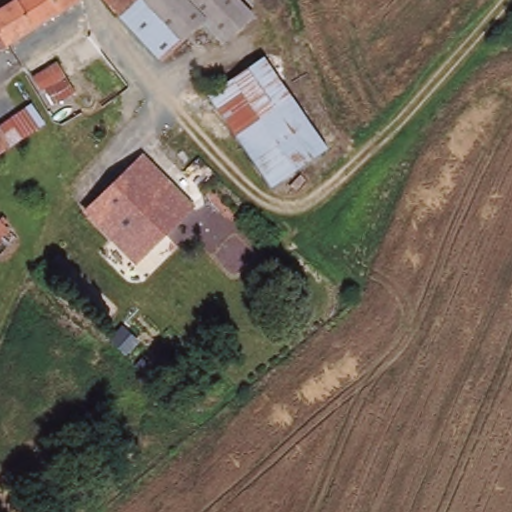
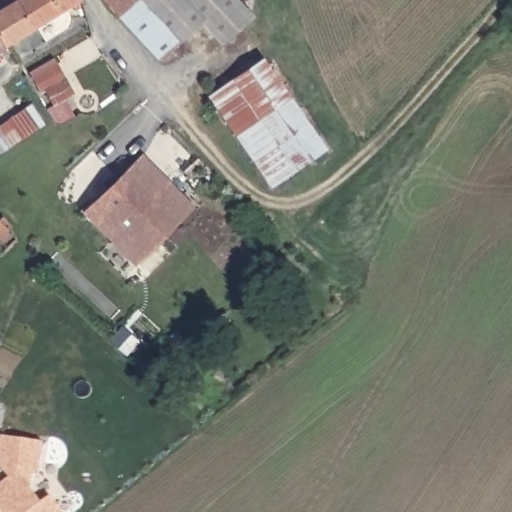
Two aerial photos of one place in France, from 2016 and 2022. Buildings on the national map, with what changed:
unchanged [(3,49),(0,44),(0,12),(19,0),(76,0),(77,2),(3,49)]
unchanged [(102,0),(137,0),(119,18),(102,0)]
unchanged [(141,41),(119,18),(137,0),(240,0),(253,13),(242,22),(221,41),(202,22),(157,61),(148,70),(146,70),(130,51),(141,41)]
unchanged [(3,49),(0,51),(0,44),(3,49)]
unchanged [(327,149),(269,190),(206,98),(262,57),(327,149)]
unchanged [(55,62),(72,90),(51,104),(43,90),(38,93),(30,78),(55,62)]
unchanged [(4,122),(25,108),(37,126),(16,140),(0,152),(0,124),(4,122)]
unchanged [(147,150),(155,155),(148,162),(192,205),(134,264),(84,215),(147,150)]
unchanged [(4,214),(8,218),(2,224),(7,230),(0,237),(0,218),(4,214)]
new [(7,478),(0,469),(0,437),(41,443),(36,477),(30,476),(28,489),(40,504),(48,497),(59,512),(0,512),(0,484),(7,478)]

